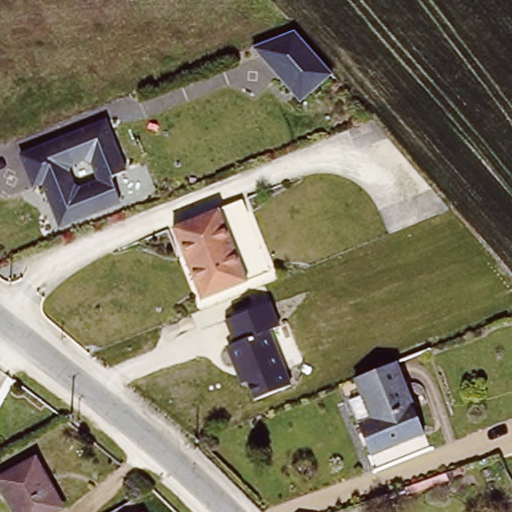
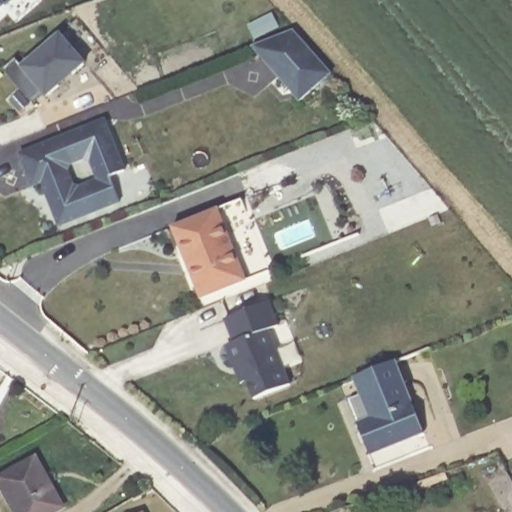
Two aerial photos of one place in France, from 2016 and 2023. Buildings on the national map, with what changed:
new [(0,9),(0,0),(10,0),(0,9)]
unchanged [(291,23),(332,72),(298,102),(250,47),(291,23)]
new [(18,68),(55,36),(80,66),(68,76),(66,74),(52,85),(55,88),(42,99),(39,95),(27,105),(0,73),(0,68),(10,59),(18,68)]
unchanged [(38,179),(29,182),(16,150),(101,117),(120,166),(105,172),(115,197),(54,220),(38,179)]
unchanged [(212,212),(240,283),(195,301),(167,230),(212,212)]
unchanged [(248,380),(241,383),(225,346),(232,343),(223,320),(270,300),(280,326),(268,331),(289,386),(254,397),(248,380)]
unchanged [(365,456),(354,426),(358,421),(350,399),(360,398),(351,378),(400,360),(428,436),(365,456)]
unchanged [(63,507),(55,512),(17,512),(0,482),(0,478),(35,458),(63,507)]

